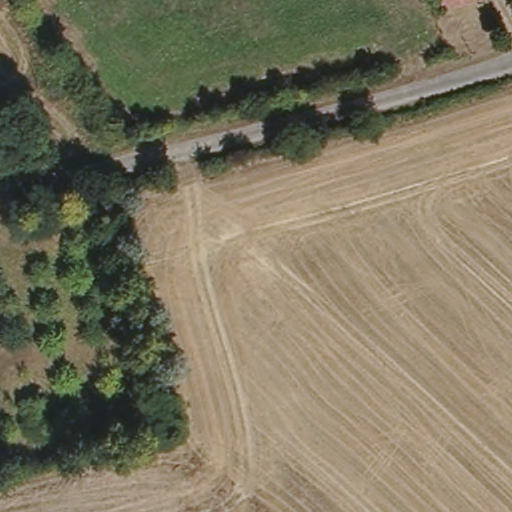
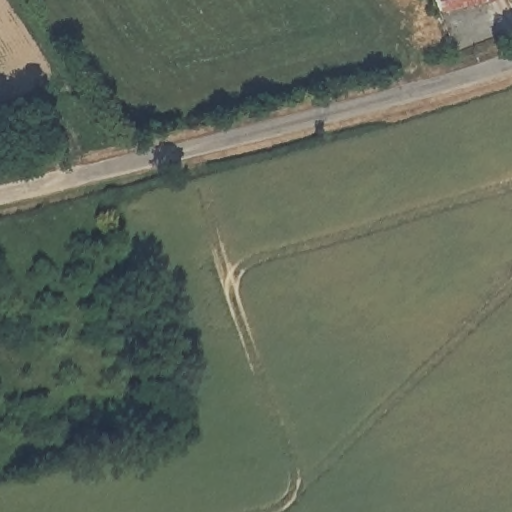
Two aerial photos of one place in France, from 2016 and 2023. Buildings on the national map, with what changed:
unchanged [(432,0),(475,0),(436,9),(432,0)]

